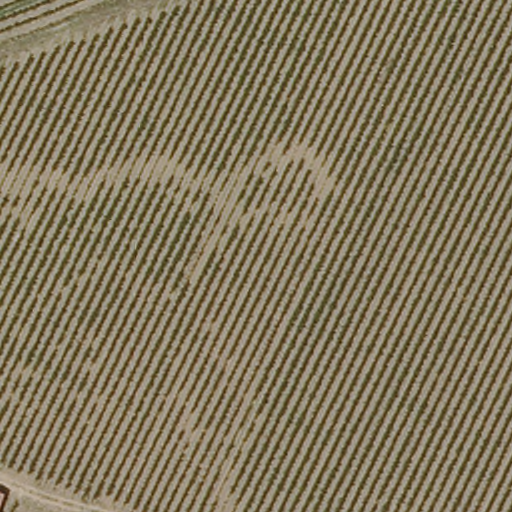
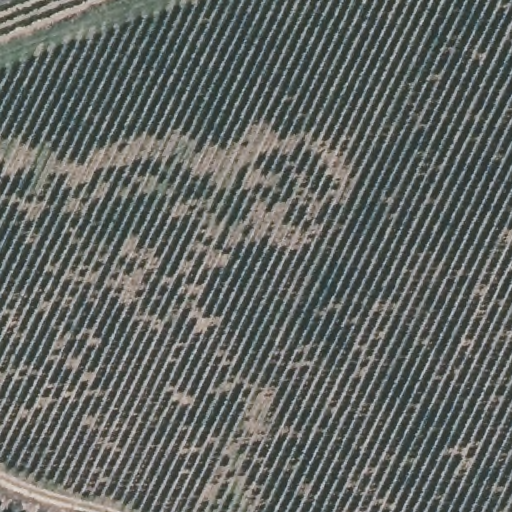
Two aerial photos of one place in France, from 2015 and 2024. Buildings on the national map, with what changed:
unchanged [(5,495),(0,508),(0,492),(5,495)]

